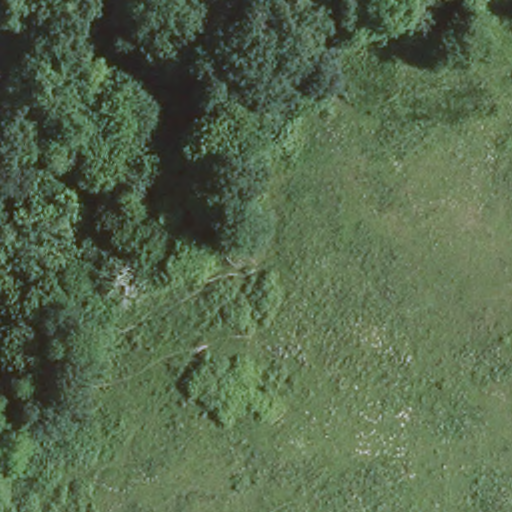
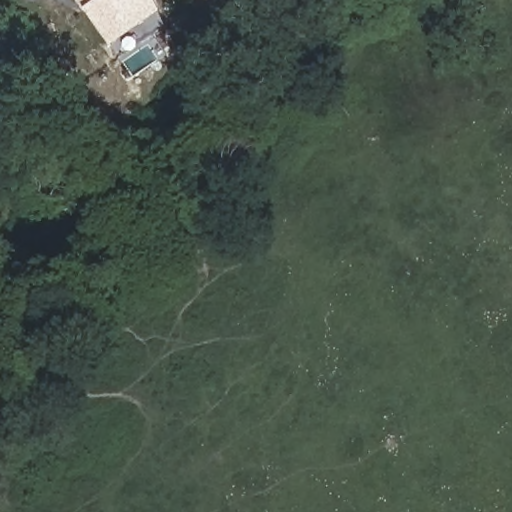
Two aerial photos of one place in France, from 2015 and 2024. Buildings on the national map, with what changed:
new [(156,8),(108,41),(75,0),(153,0),(156,8)]

